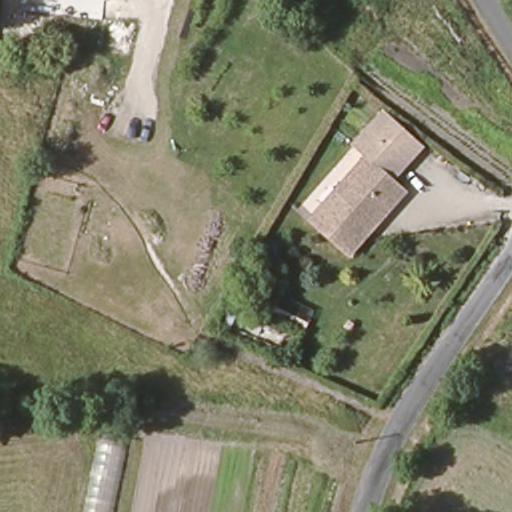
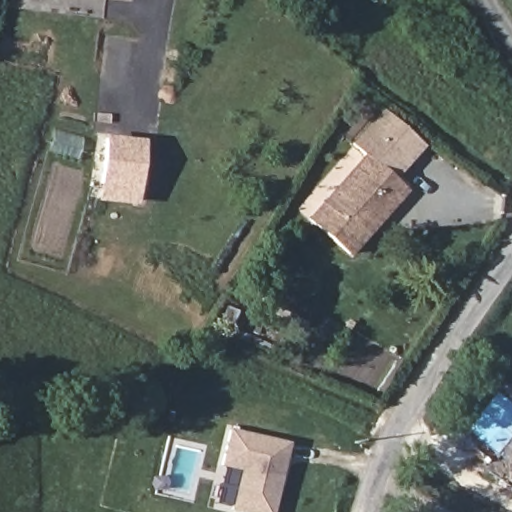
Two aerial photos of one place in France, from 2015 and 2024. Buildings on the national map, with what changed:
unchanged [(367,155),(365,157),(351,144),(383,108),(426,147),(396,182),(367,155)]
new [(134,206),(95,201),(102,135),(141,140),(134,206)]
unchanged [(350,264),(308,225),(365,161),(406,199),(392,215),(365,247),(350,264)]
demolished [(118,512),(82,512),(99,426),(132,437),(118,512)]
new [(290,444),(278,512),(238,512),(232,511),(241,473),(222,470),(230,431),(290,444)]

